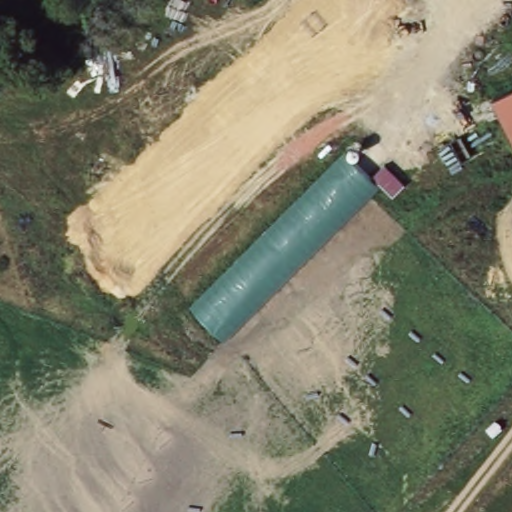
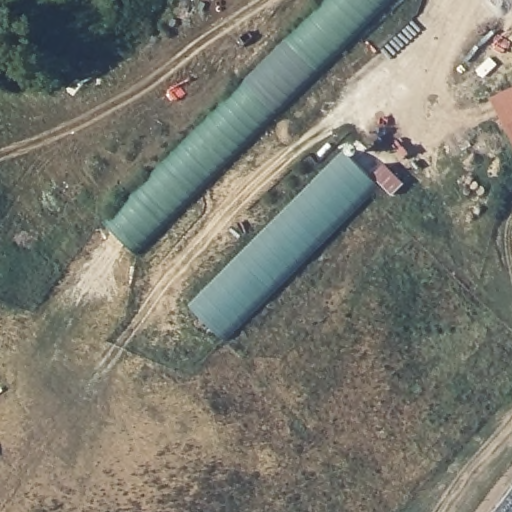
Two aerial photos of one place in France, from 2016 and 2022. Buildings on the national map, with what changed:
new [(137,252),(106,220),(330,0),(393,0),(137,252)]
unchanged [(512,87),(512,136),(492,96),(512,87)]
unchanged [(392,195),(380,185),(225,338),(191,305),(344,150),(370,177),(384,162),(405,184),(392,195)]

